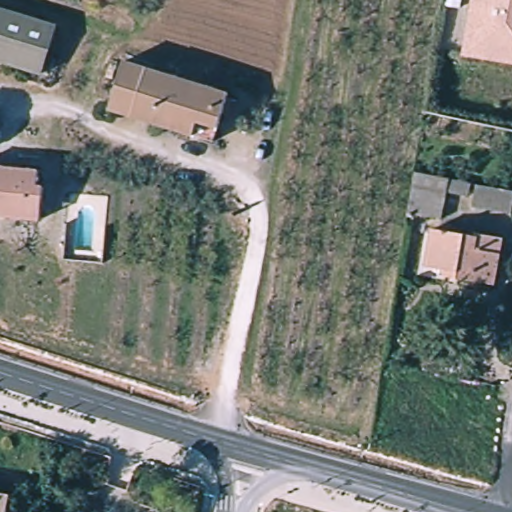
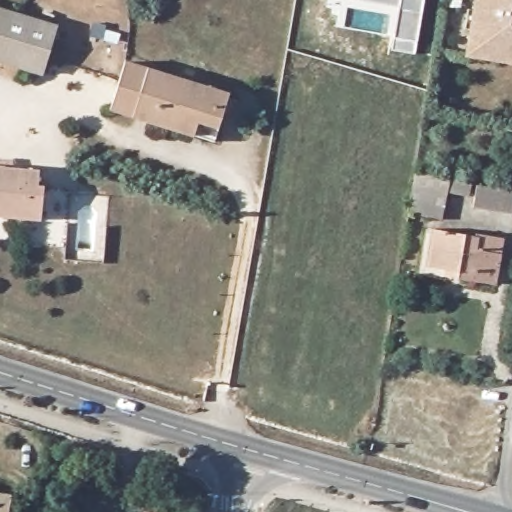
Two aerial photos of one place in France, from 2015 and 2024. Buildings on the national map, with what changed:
new [(392,50),(399,6),(365,0),(424,0),(415,54),(392,50)]
unchanged [(510,64),(487,60),(490,49),(474,46),(480,5),(481,0),(512,0),(512,64),(510,64)]
unchanged [(42,76),(0,63),(0,7),(58,25),(42,76)]
unchanged [(125,61),(228,91),(214,140),(110,110),(125,61)]
unchanged [(37,190),(42,190),(41,222),(0,220),(0,171),(38,174),(37,190)]
unchanged [(411,216),(418,175),(512,193),(512,215),(477,209),(479,202),(450,197),(445,220),(411,216)]
unchanged [(474,280),(457,275),(457,268),(430,264),(437,228),(474,235),(475,228),(482,230),(474,280)]
unchanged [(507,235),(497,285),(474,280),(482,230),(507,235)]
unchanged [(6,512),(0,512),(0,490),(10,492),(6,512)]

